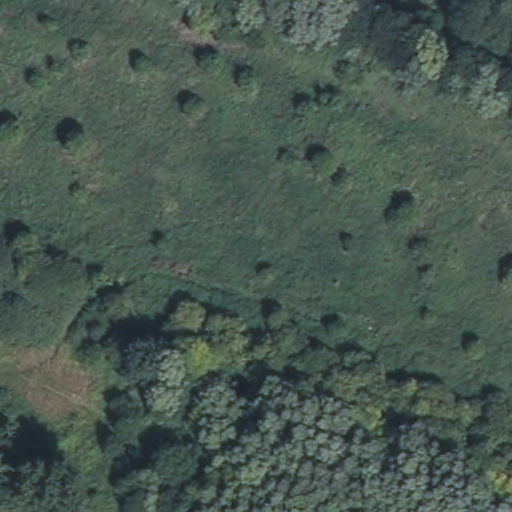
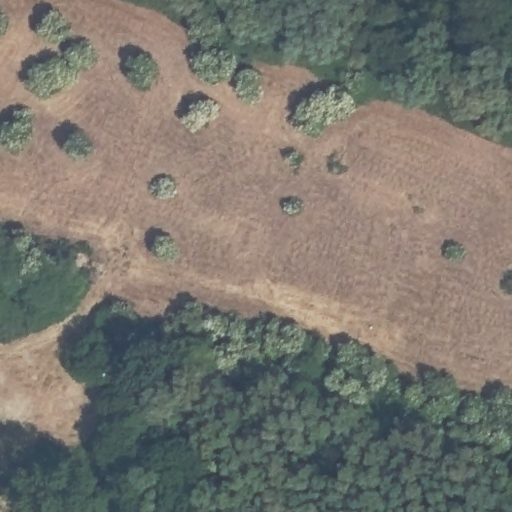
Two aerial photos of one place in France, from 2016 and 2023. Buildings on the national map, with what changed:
[]

